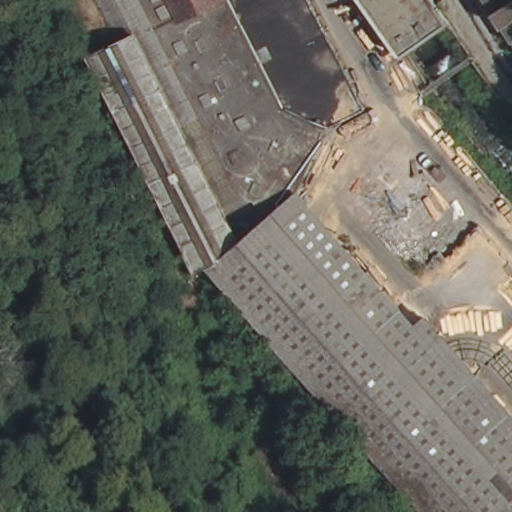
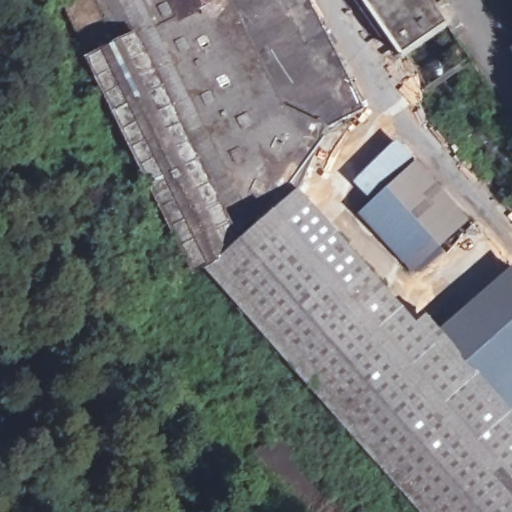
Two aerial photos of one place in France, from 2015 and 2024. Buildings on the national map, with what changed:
unchanged [(324,121),(292,185),(290,187),(258,252),(217,291),(218,292),(287,372),(267,387),(248,365),(200,283),(58,0),(305,0),(355,102),(324,121)]
unchanged [(454,24),(452,25),(415,54),(410,57),(368,0),(437,0),(438,2),(454,24)]
demolished [(489,0),(512,0),(512,32),(489,0)]
new [(372,202),(353,183),(398,141),(417,161),(470,221),(440,247),(447,256),(418,279),(360,214),(372,202)]
demolished [(475,226),(512,267),(512,273),(482,299),(441,262),(428,275),(351,193),(393,147),(475,226)]
unchanged [(350,248),(423,327),(427,323),(449,347),(447,348),(512,422),(512,512),(414,512),(287,372),(218,292),(217,291),(258,252),(290,187),(292,185),(350,248)]
new [(512,269),(512,366),(491,342),(462,367),(447,348),(449,347),(437,334),(512,269)]
demolished [(300,427),(286,408),(300,396),(317,415),(300,427)]
unchanged [(233,454),(257,433),(322,512),(282,512),(233,454)]

